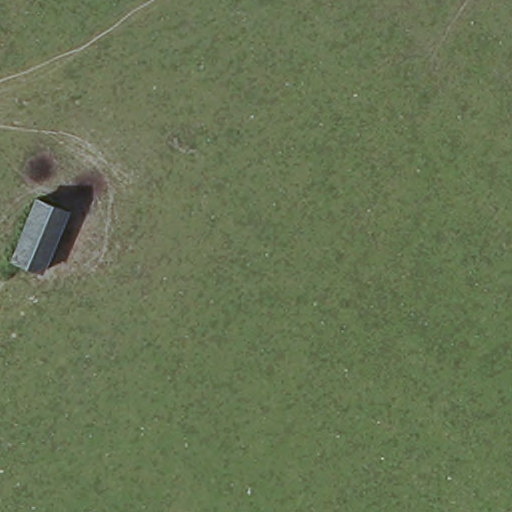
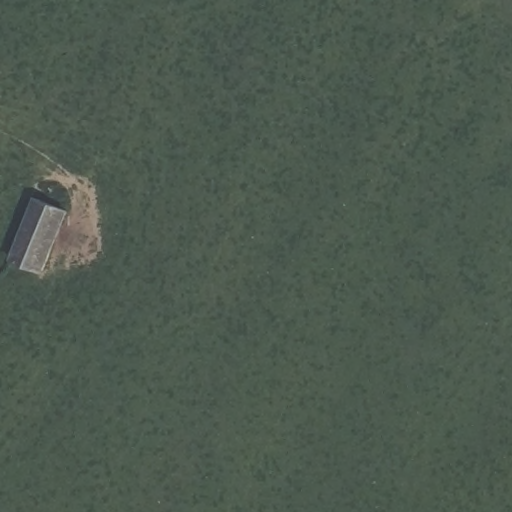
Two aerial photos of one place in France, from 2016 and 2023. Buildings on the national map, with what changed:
unchanged [(74,214),(50,275),(12,262),(38,200),(74,214)]

